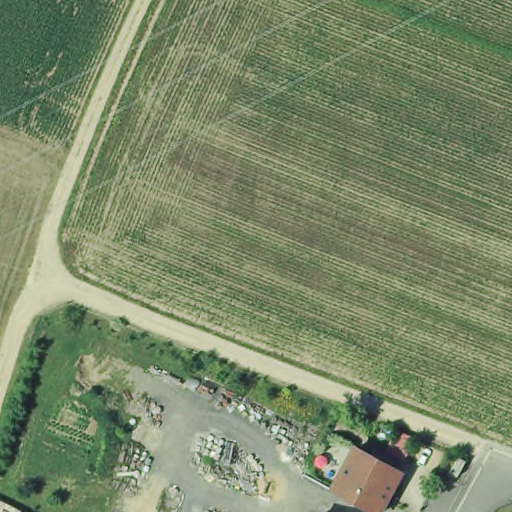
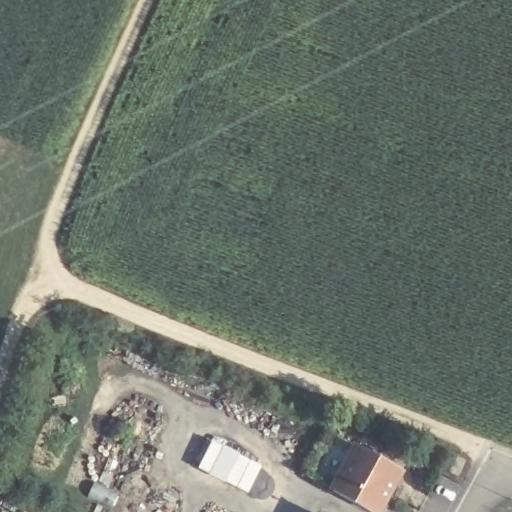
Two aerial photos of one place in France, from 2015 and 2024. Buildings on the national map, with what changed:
new [(249,493),(199,468),(213,440),(263,465),(249,493)]
unchanged [(401,470),(379,512),(374,512),(329,487),(355,444),(401,470)]

